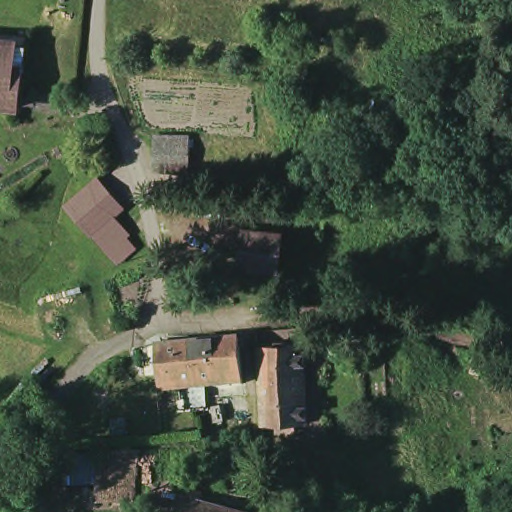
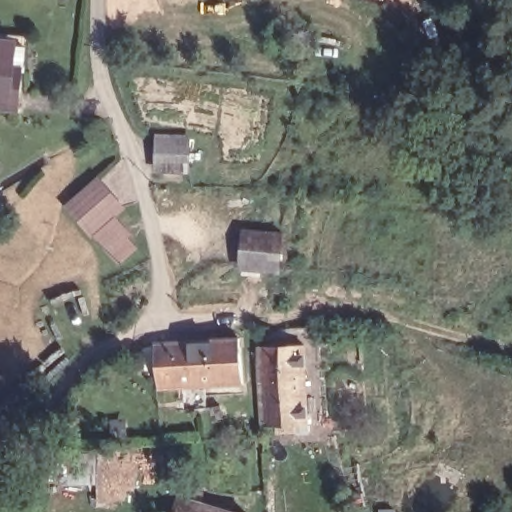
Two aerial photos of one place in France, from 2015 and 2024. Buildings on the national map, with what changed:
unchanged [(0,99),(0,26),(28,30),(23,64),(19,65),(18,71),(14,101),(0,99)]
unchanged [(163,159),(162,142),(162,129),(193,129),(193,143),(193,160),(163,159)]
unchanged [(107,239),(95,224),(91,220),(90,221),(78,208),(67,195),(97,170),(108,183),(120,196),(113,201),(122,211),(128,219),(107,239)]
unchanged [(280,231),(278,267),(243,265),(245,231),(280,231)]
unchanged [(194,377),(192,332),(240,329),(243,373),(194,377)]
unchanged [(194,377),(166,378),(165,365),(148,366),(147,338),(162,333),(192,332),(194,377)]
unchanged [(260,337),(305,333),(307,367),(262,371),(260,337)]
unchanged [(280,422),(278,414),(265,415),(262,371),(307,367),(310,412),(298,413),(298,422),(280,422)]
unchanged [(102,482),(83,482),(82,447),(133,447),(135,495),(102,497),(102,482)]
unchanged [(222,497),(218,512),(176,512),(183,487),(222,497)]
unchanged [(255,507),(254,512),(218,512),(222,497),(255,507)]

